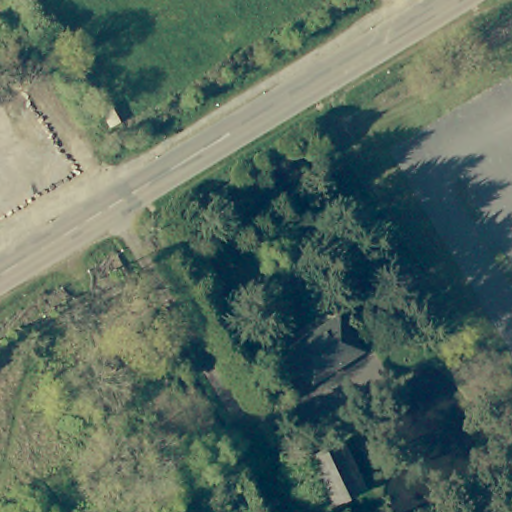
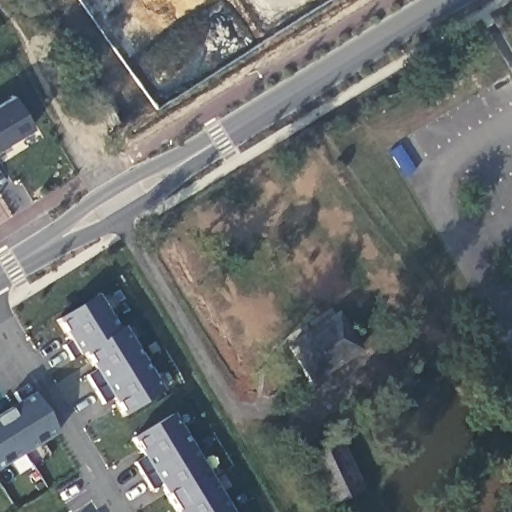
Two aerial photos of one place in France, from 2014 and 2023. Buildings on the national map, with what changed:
new [(0,104),(13,96),(33,127),(0,147),(0,104)]
unchanged [(111,107),(120,124),(111,129),(102,112),(111,107)]
new [(97,297),(118,331),(123,327),(162,392),(123,416),(123,417),(111,398),(104,404),(87,376),(94,372),(82,352),(78,355),(72,359),(64,346),(71,342),(58,320),(97,297)]
unchanged [(358,350),(309,382),(287,347),(335,316),(358,350)]
new [(20,402),(15,393),(27,386),(33,394),(57,433),(0,469),(0,415),(10,408),(20,402)]
new [(136,463),(145,457),(133,439),(172,415),(231,512),(178,512),(161,484),(152,489),(136,463)]
unchanged [(364,488),(327,506),(304,459),(340,440),(364,488)]

